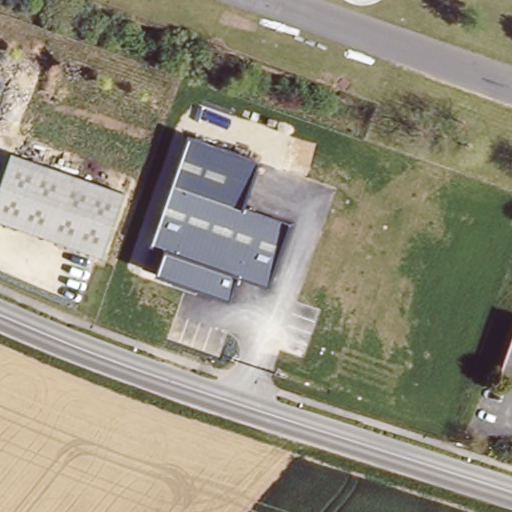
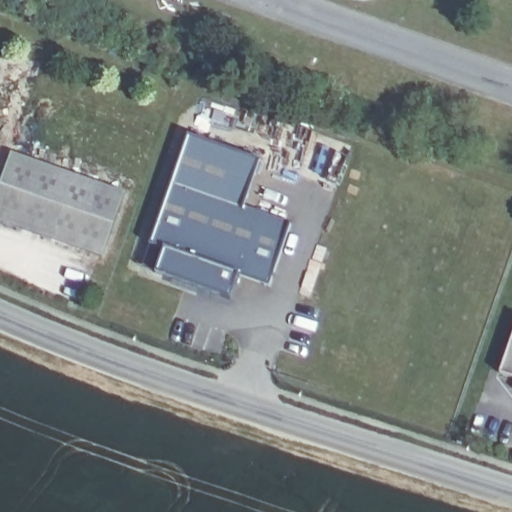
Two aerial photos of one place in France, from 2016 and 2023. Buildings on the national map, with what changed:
unchanged [(157,273),(165,249),(151,245),(189,136),(260,160),(243,208),(290,223),(269,286),(237,274),(229,298),(157,273)]
unchanged [(102,258),(0,223),(0,191),(12,155),(123,193),(102,258)]
unchanged [(498,373),(512,333),(512,378),(498,373)]
unchanged [(510,387),(512,383),(512,388),(510,387)]

